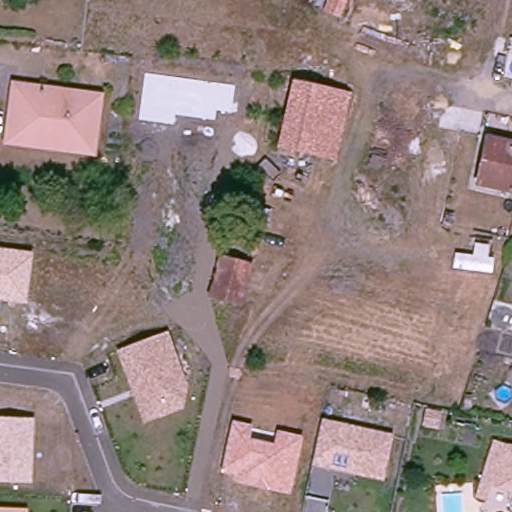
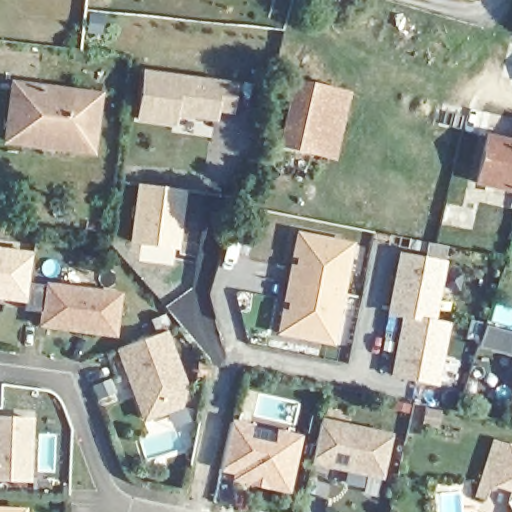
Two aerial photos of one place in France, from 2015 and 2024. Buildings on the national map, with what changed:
unchanged [(319,12),(324,0),(342,0),(336,19),(319,12)]
new [(219,113),(217,123),(177,116),(174,129),(135,123),(143,71),(237,84),(233,116),(219,113)]
unchanged [(275,145),(288,81),(333,92),(319,156),(275,145)]
unchanged [(9,140),(14,89),(98,96),(94,157),(71,155),(8,150),(9,140)]
unchanged [(343,161),(319,156),(333,92),(356,96),(343,161)]
unchanged [(479,184),(487,139),(512,144),(512,190),(479,184)]
new [(135,183),(188,190),(175,266),(136,261),(139,246),(128,245),(135,183)]
new [(277,335),(297,232),(354,243),(334,346),(277,335)]
unchanged [(25,302),(0,299),(0,249),(29,253),(25,302)]
new [(436,321),(450,323),(438,386),(391,376),(402,317),(387,315),(398,253),(445,261),(436,321)]
new [(123,293),(116,341),(39,329),(41,313),(25,311),(25,302),(26,282),(45,283),(123,293)]
unchanged [(187,387),(182,409),(144,423),(116,351),(168,332),(187,387)]
unchanged [(394,435),(384,480),(312,465),(322,417),(394,435)]
unchanged [(303,436),(290,496),(234,482),(235,476),(220,472),(234,419),(253,424),(249,438),(275,444),(276,430),(303,436)]
unchanged [(33,484),(0,482),(0,420),(34,420),(33,484)]
unchanged [(486,480),(498,442),(512,446),(512,488),(486,480)]
unchanged [(0,508),(29,509),(29,512),(0,512),(0,508)]

